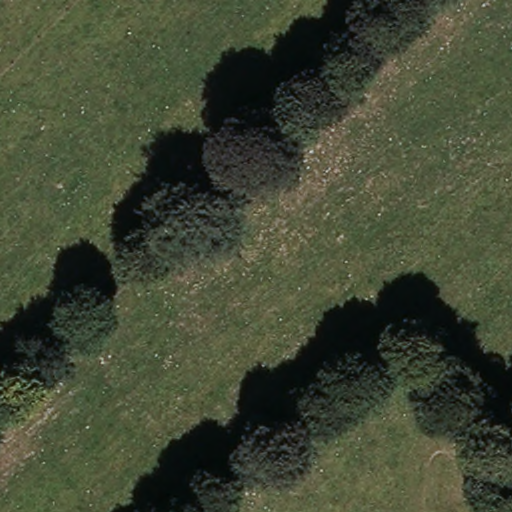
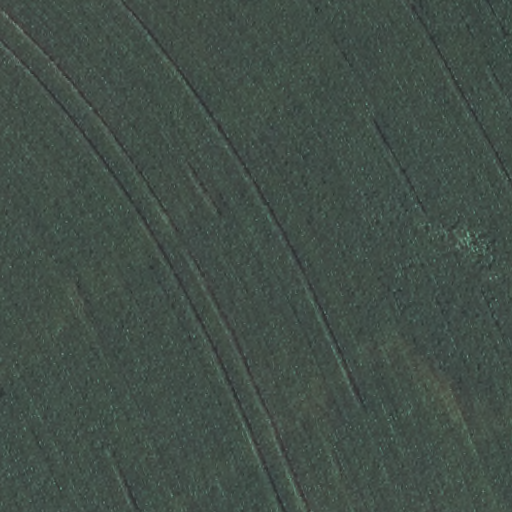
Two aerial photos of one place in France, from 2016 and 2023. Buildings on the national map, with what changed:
[]

